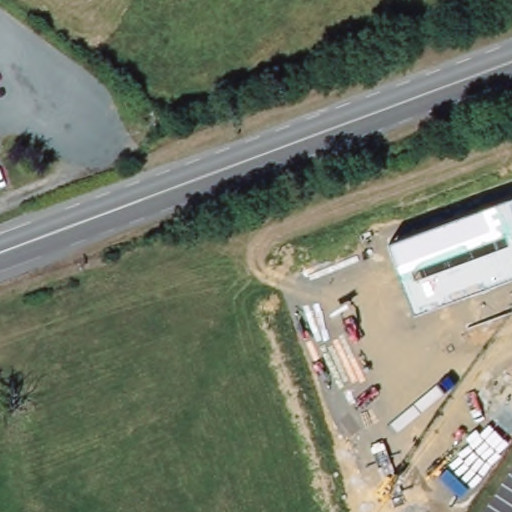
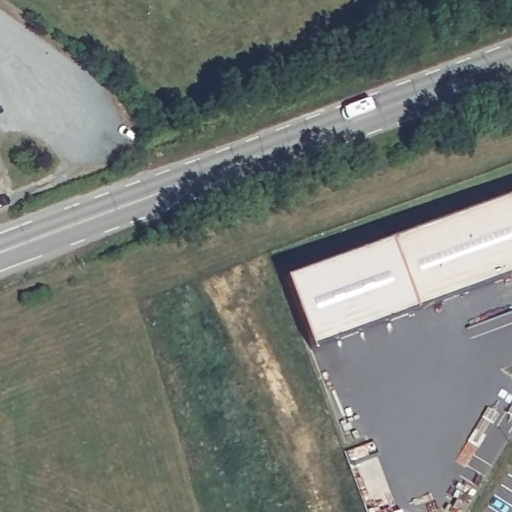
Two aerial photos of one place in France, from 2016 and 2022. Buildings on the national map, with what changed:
unchanged [(512,197),(512,277),(417,312),(391,242),(512,197)]
new [(311,347),(286,278),(391,242),(417,312),(311,347)]

